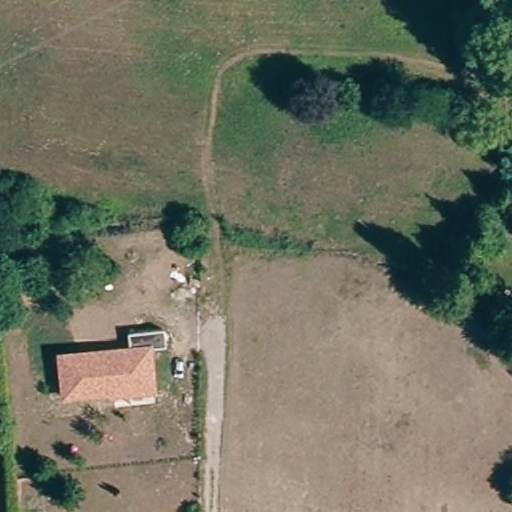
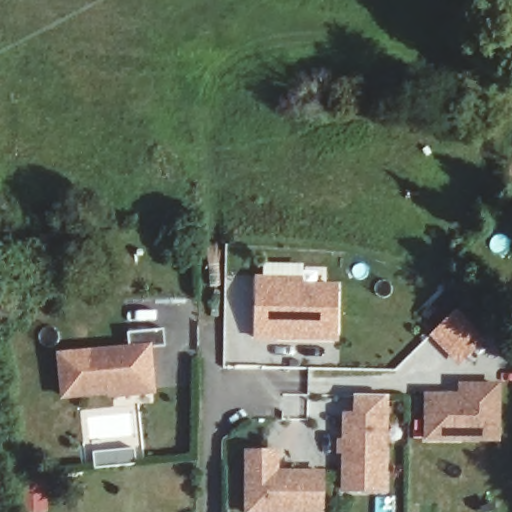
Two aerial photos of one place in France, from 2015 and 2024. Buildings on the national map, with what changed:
new [(256,339),(257,276),(305,277),(305,285),(340,285),(339,340),(256,339)]
new [(460,365),(431,336),(459,311),(488,340),(460,365)]
unchanged [(128,345),(127,332),(164,327),(166,346),(152,348),(157,392),(61,401),(56,352),(128,345)]
new [(425,441),(426,395),(459,395),(459,385),(502,384),(502,443),(425,441)]
new [(344,415),(355,416),(355,395),(385,396),(384,491),(343,491),(344,415)]
new [(275,452),(275,472),(322,473),(321,512),(246,512),(246,452),(275,452)]

